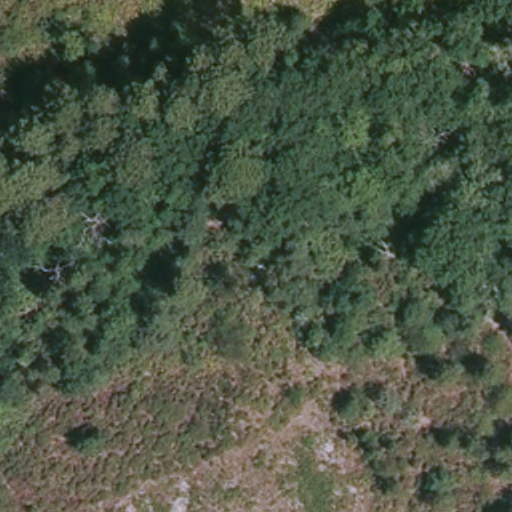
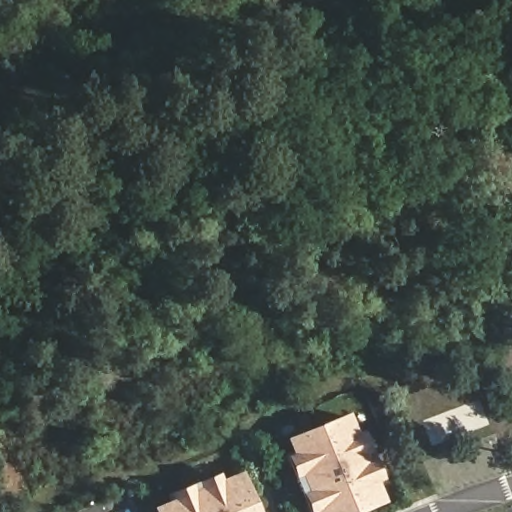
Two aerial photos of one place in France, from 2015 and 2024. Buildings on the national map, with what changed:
new [(360,512),(308,512),(285,456),(291,453),(285,438),(349,412),(357,432),(362,430),(383,478),(377,480),(386,501),(360,512)]
new [(152,507),(171,499),(168,493),(219,473),(221,479),(241,471),(257,512),(153,512),(152,507)]

